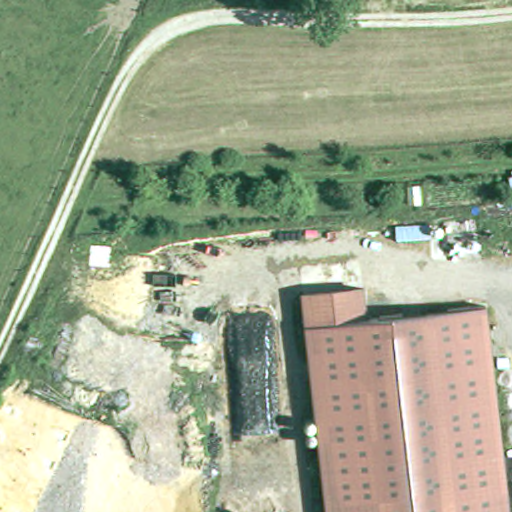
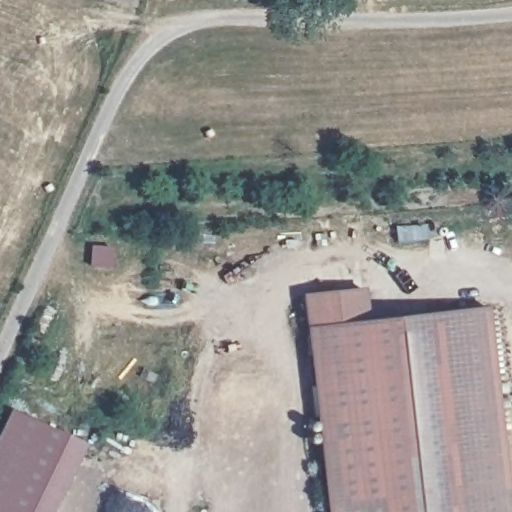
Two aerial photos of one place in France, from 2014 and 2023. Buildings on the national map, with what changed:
unchanged [(362,288),(365,319),(484,305),(507,512),(326,512),(302,295),(362,288)]
new [(80,443),(47,512),(0,512),(0,423),(7,408),(80,443)]

